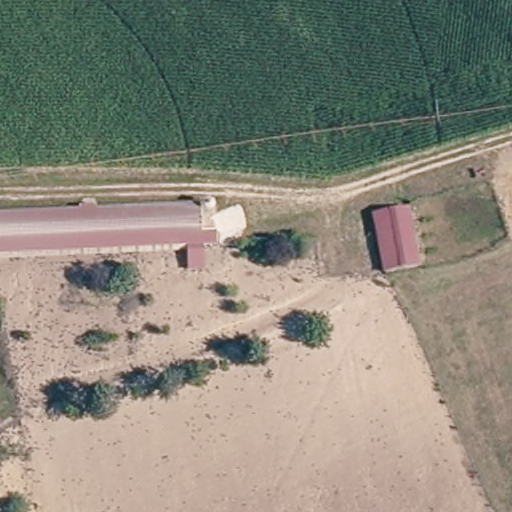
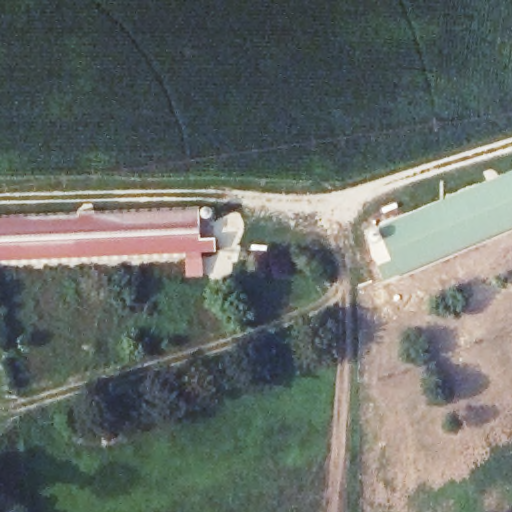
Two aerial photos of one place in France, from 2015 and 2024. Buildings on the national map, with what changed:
new [(393,262),(379,228),(512,172),(512,229),(385,281),(380,267),(393,262)]
demolished [(512,176),(512,237),(498,239),(492,179),(512,176)]
unchanged [(189,198),(190,227),(212,225),(211,247),(0,261),(0,211),(189,198)]
demolished [(369,215),(397,212),(403,211),(410,272),(403,273),(377,277),(369,215)]

